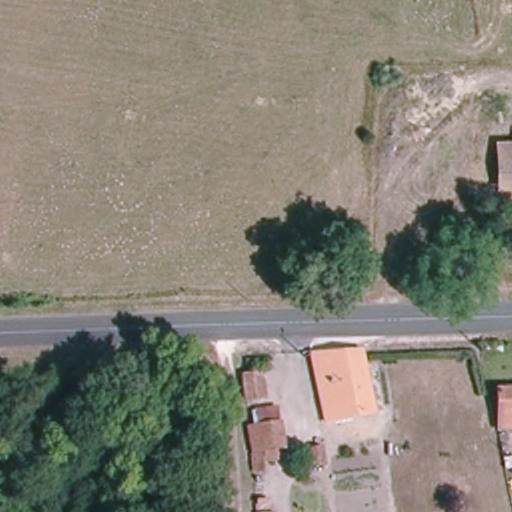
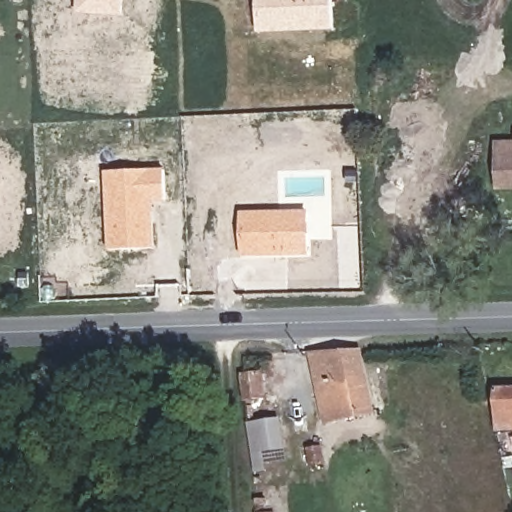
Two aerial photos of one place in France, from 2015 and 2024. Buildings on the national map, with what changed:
new [(77,13),(78,0),(126,0),(125,16),(77,13)]
new [(258,0),(332,0),(334,30),(260,33),(258,0)]
unchanged [(512,141),(512,191),(502,191),(501,141),(512,141)]
new [(165,201),(155,204),(157,250),(109,251),(106,173),(165,169),(165,201)]
new [(306,249),(306,256),(242,258),(241,213),(310,211),(311,249),(306,249)]
unchanged [(364,351),(372,414),(328,419),(314,351),(364,351)]
unchanged [(264,373),(266,395),(248,397),(245,374),(264,373)]
unchanged [(512,428),(500,428),(501,390),(512,390),(512,428)]
unchanged [(278,417),(282,449),(258,450),(254,419),(278,417)]
unchanged [(326,445),(327,462),(315,463),(314,446),(326,445)]
unchanged [(254,502),(274,501),(275,512),(255,512),(254,502)]

